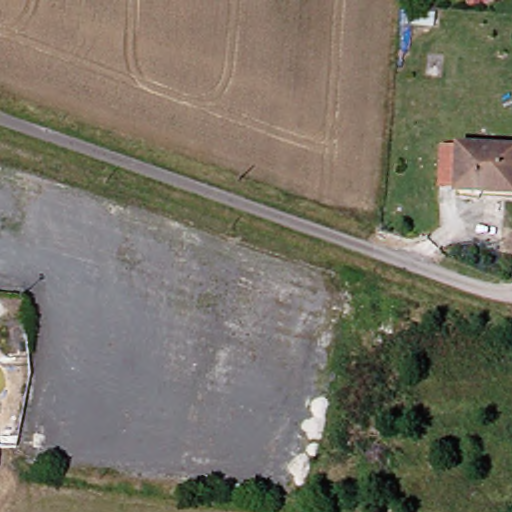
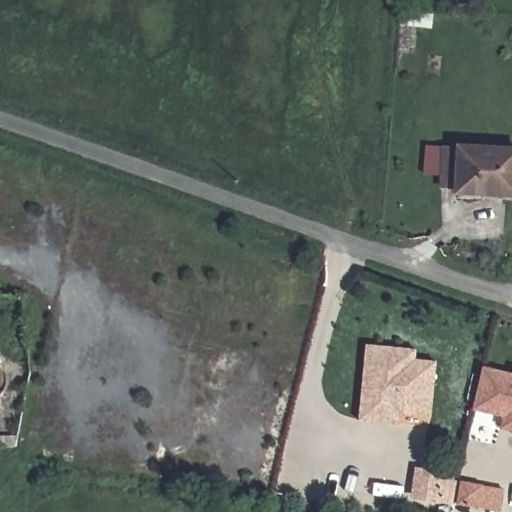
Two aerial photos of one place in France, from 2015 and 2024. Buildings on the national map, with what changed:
unchanged [(473,194),(447,193),(450,147),(510,150),(508,193),(507,196),(473,194)]
new [(366,345),(417,350),(416,360),(437,362),(432,419),(401,416),(400,424),(359,422),(366,345)]
new [(473,408),(483,367),(512,374),(512,429),(509,428),(502,427),(504,416),(473,408)]
new [(456,474),(451,505),(410,500),(415,467),(456,474)]

